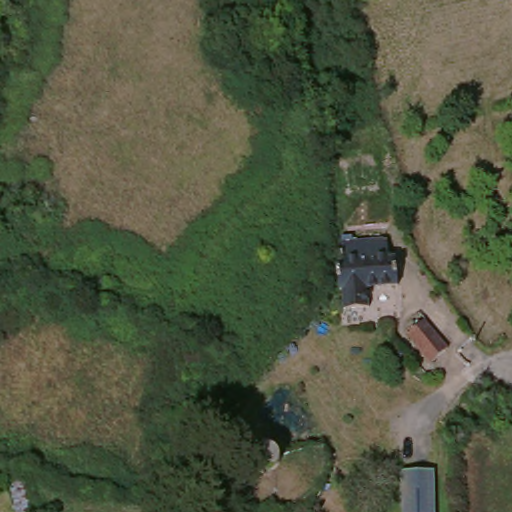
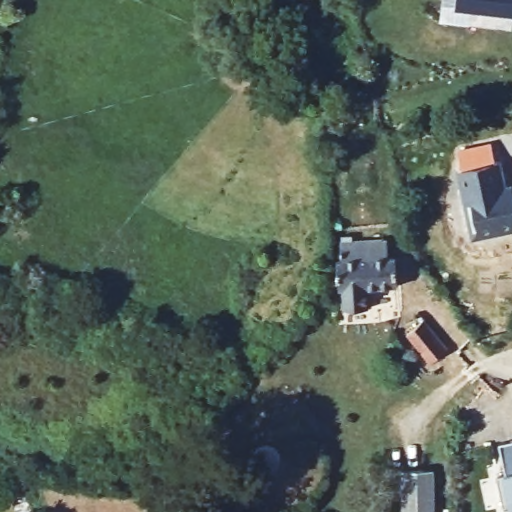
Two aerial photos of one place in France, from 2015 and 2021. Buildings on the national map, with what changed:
new [(512,0),(512,11),(459,7),(460,0),(512,0)]
new [(491,145),(495,163),(499,162),(504,179),(501,179),(505,192),(512,190),(512,231),(483,239),(481,237),(476,239),(459,172),(463,171),(458,152),(491,145)]
unchanged [(398,284),(369,286),(370,305),(345,307),(344,286),(339,286),(338,256),(342,256),(341,238),(388,235),(389,252),(396,251),(398,284)]
unchanged [(453,351),(435,365),(411,335),(429,321),(453,351)]
new [(504,508),(498,478),(507,476),(500,445),(512,443),(512,507),(504,508)]
unchanged [(279,454),(279,458),(279,462),(278,465),(276,469),(273,471),(269,472),(264,473),(261,472),(258,471),(254,468),(252,465),(251,461),(251,457),(251,454),(254,450),(256,447),(259,445),(263,445),(267,445),(271,445),(274,447),(277,450),(279,454)]
unchanged [(431,472),(432,512),(402,512),(401,473),(431,472)]

